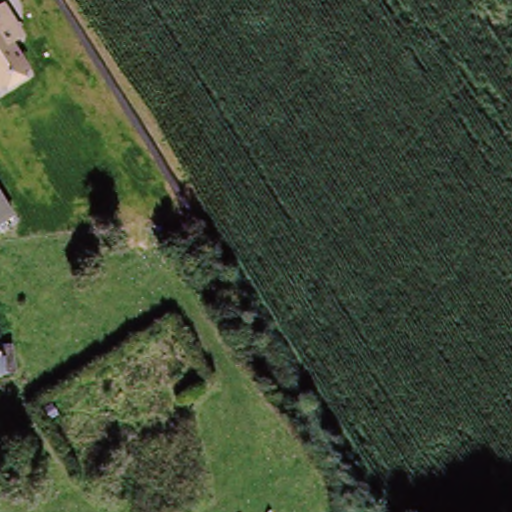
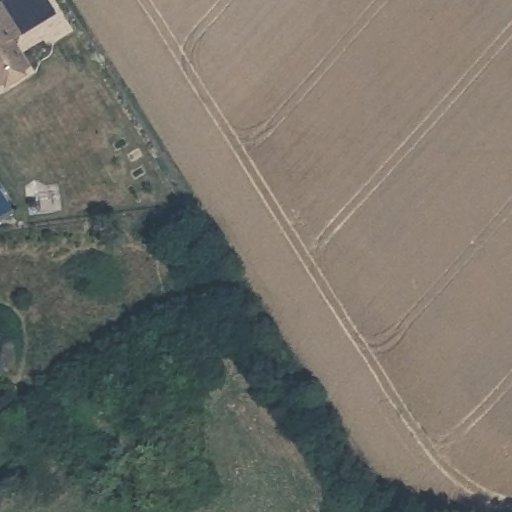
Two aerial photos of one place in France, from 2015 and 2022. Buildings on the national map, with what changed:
unchanged [(34,68),(0,91),(0,19),(34,68)]
unchanged [(3,369),(5,378),(0,378),(0,347),(12,345),(15,368),(3,369)]

